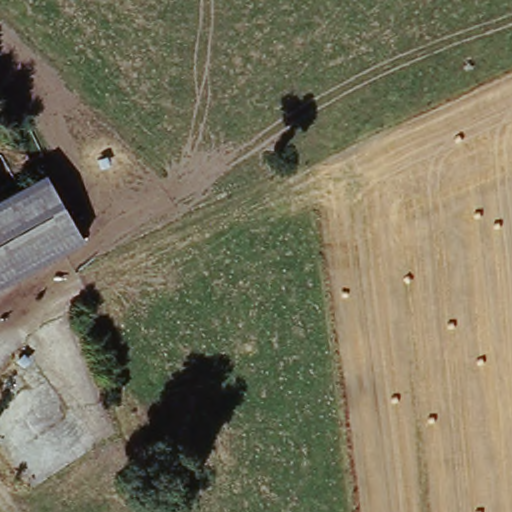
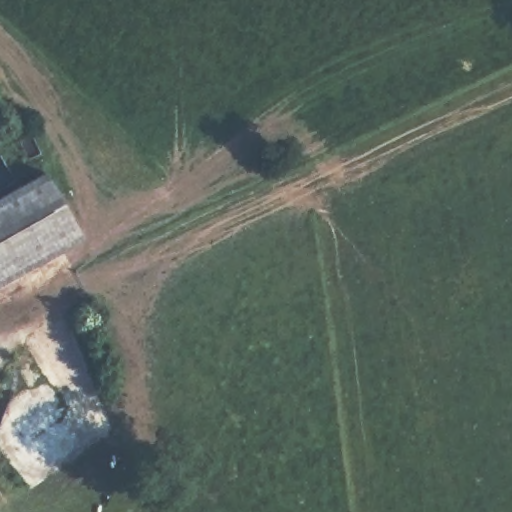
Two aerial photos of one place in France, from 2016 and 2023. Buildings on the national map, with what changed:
unchanged [(46,170),(84,237),(70,245),(37,185),(33,177),(46,170)]
unchanged [(20,184),(33,177),(37,185),(70,245),(0,284),(0,196),(20,184)]

